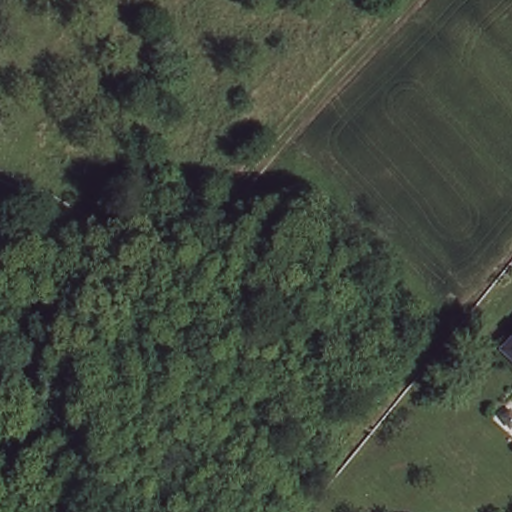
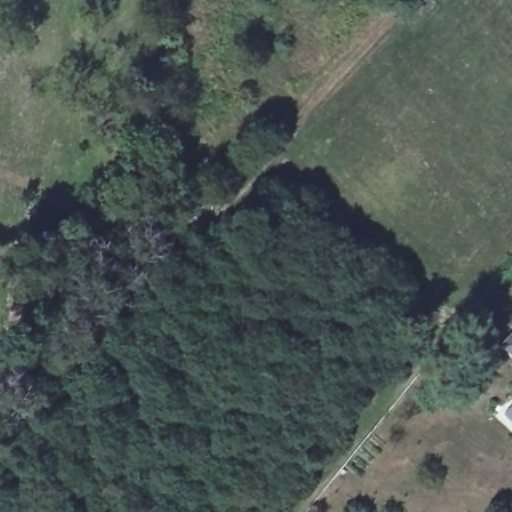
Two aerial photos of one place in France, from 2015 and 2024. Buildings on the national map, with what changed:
unchanged [(512,350),(512,360),(507,356),(512,350)]

